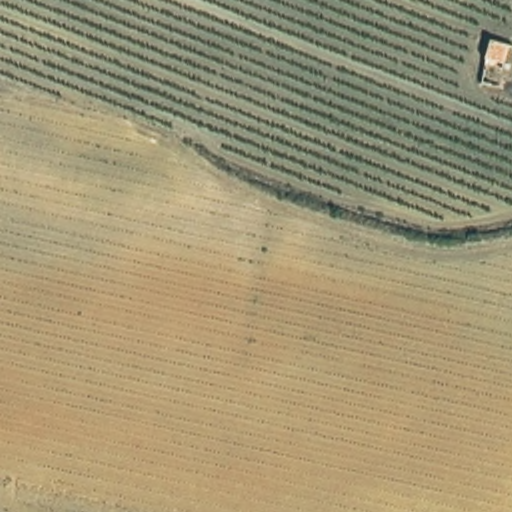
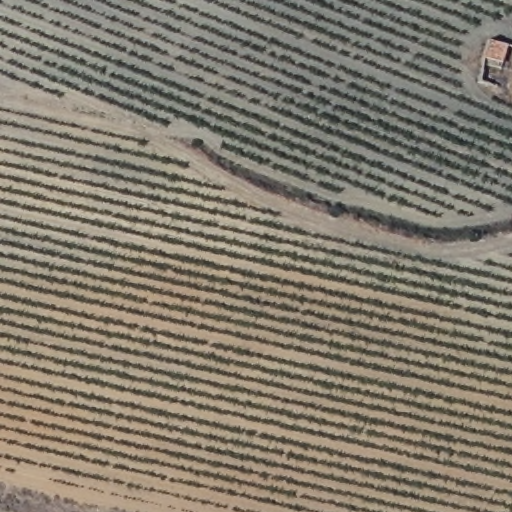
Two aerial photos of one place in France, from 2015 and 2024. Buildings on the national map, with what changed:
unchanged [(512,40),(512,60),(507,84),(480,81),(488,34),(512,40)]

